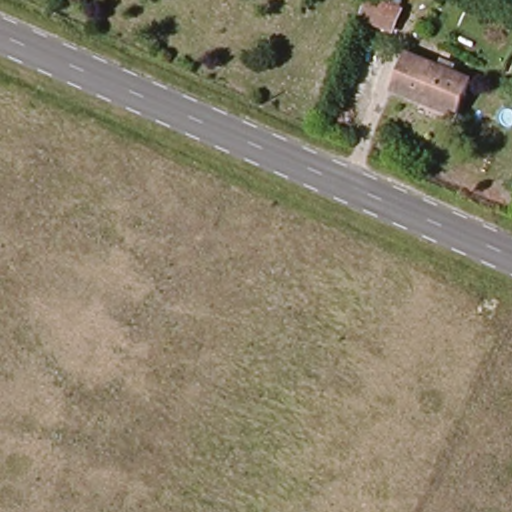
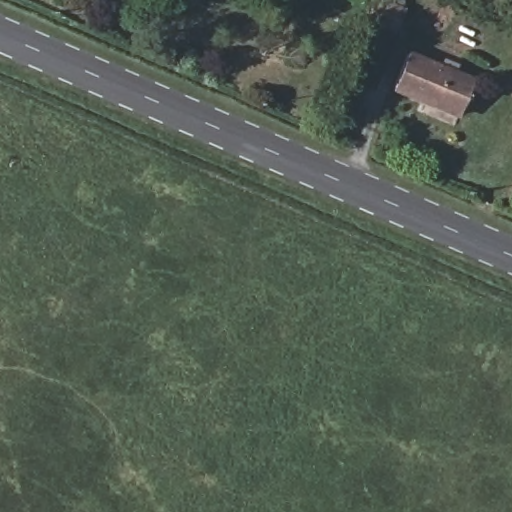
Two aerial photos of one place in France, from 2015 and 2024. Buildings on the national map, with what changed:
unchanged [(374,0),(383,0),(410,9),(399,37),(363,26),(374,0)]
unchanged [(463,117),(395,89),(403,60),(472,87),(463,117)]

